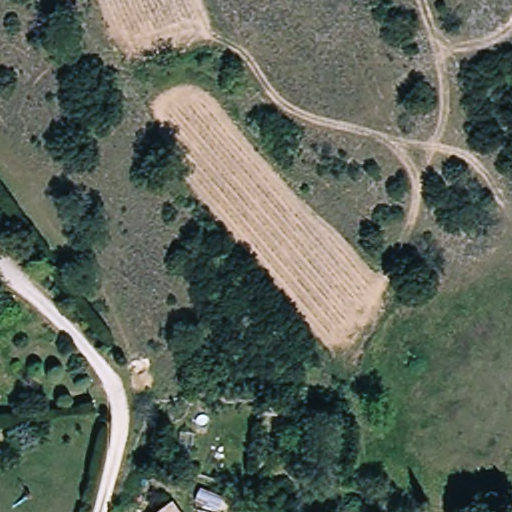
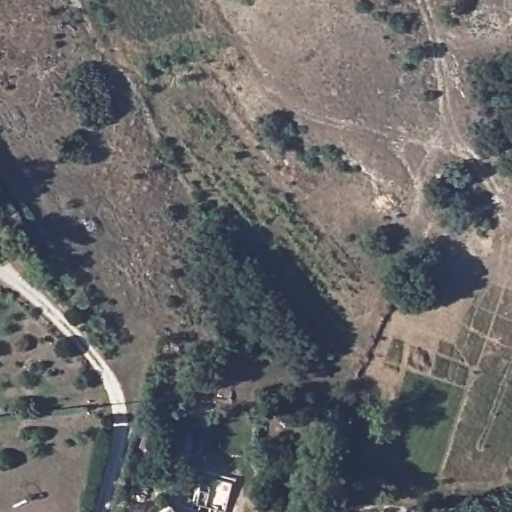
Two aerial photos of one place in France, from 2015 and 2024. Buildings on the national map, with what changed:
unchanged [(205,504),(197,500),(202,488),(226,497),(220,512),(202,512),(205,504)]
unchanged [(170,510),(172,512),(168,512),(170,510)]

